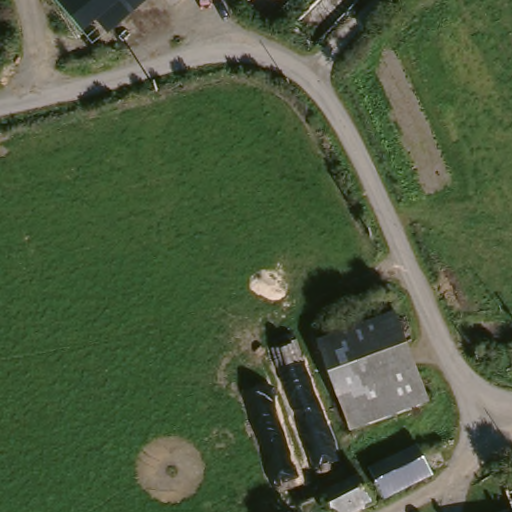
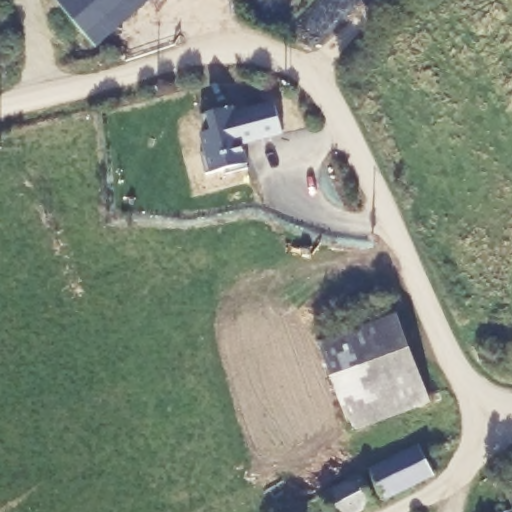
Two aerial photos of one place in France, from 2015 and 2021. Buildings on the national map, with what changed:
unchanged [(99,23),(84,33),(56,0),(149,0),(109,35),(99,23)]
new [(200,134),(207,133),(202,116),(207,114),(234,106),(235,114),(274,104),(282,136),(244,145),(248,165),(245,165),(247,169),(227,174),(227,170),(210,173),(207,174),(202,155),(205,154),(200,134)]
unchanged [(332,400),(312,348),(392,319),(411,371),(332,400)]
unchanged [(424,404),(343,433),(332,400),(411,371),(424,404)]
unchanged [(425,480),(379,504),(367,475),(412,448),(425,480)]
unchanged [(368,512),(323,512),(317,498),(357,480),(368,512)]
demolished [(436,508),(498,490),(512,486),(512,512),(438,512),(436,508)]

